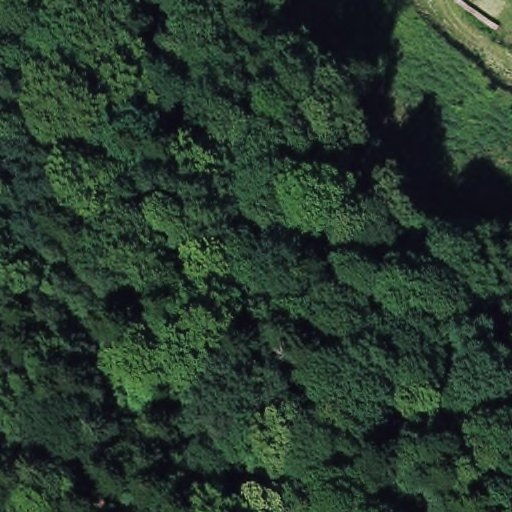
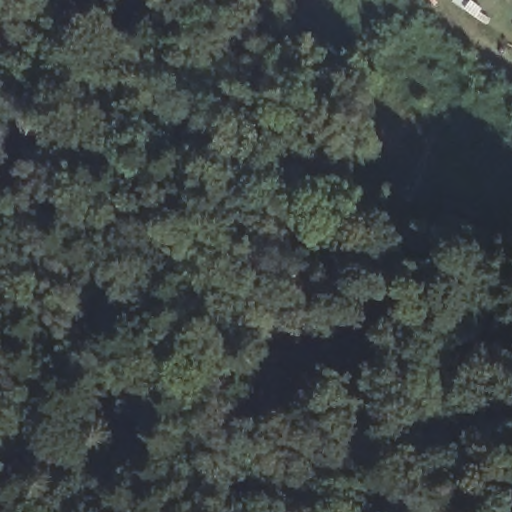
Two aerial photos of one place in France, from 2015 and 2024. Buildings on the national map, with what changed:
[]

